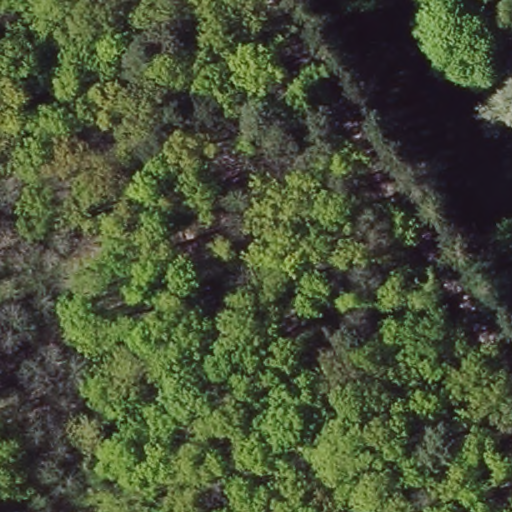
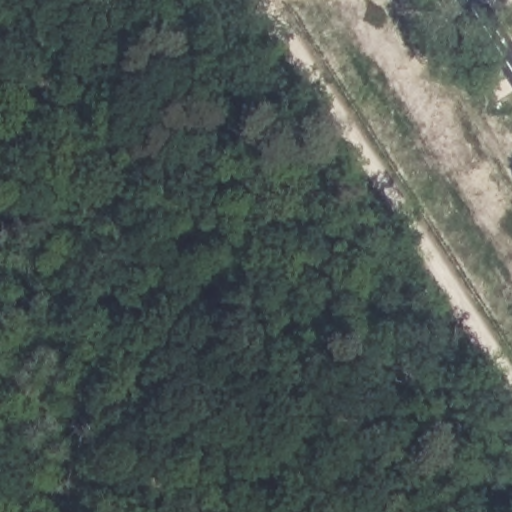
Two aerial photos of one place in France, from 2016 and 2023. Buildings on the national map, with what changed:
[]

